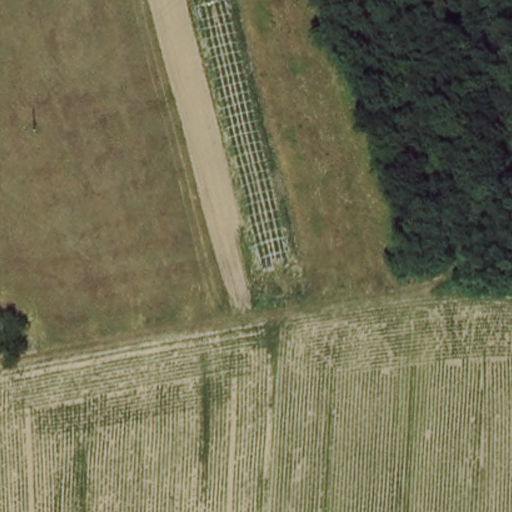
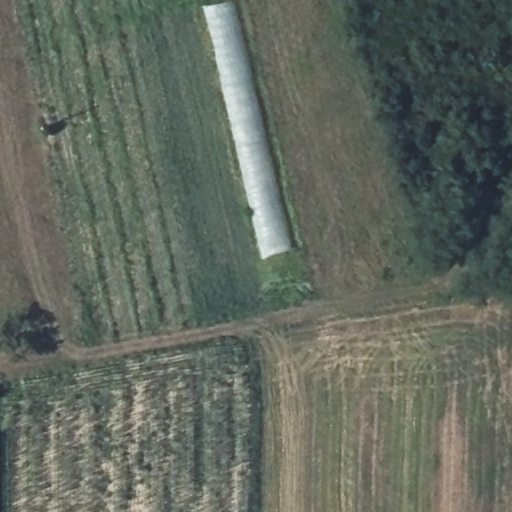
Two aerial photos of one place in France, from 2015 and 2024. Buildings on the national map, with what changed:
new [(234,0),(294,251),(264,260),(205,9),(234,0)]

